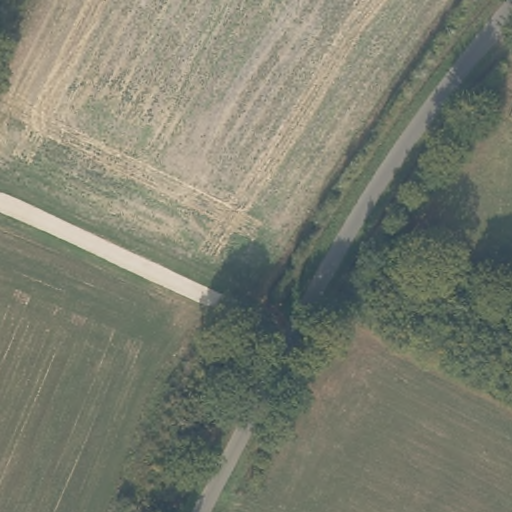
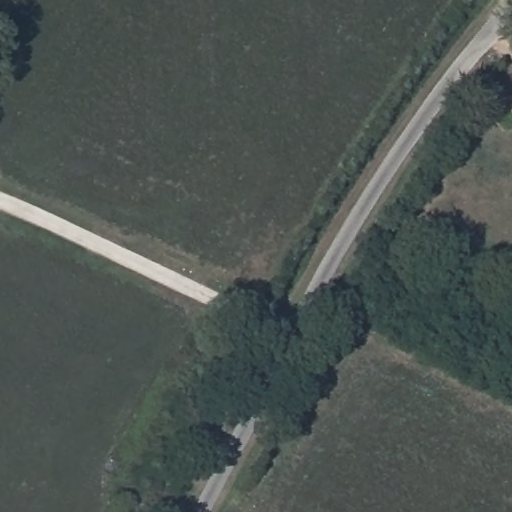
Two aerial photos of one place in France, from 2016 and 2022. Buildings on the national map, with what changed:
[]

